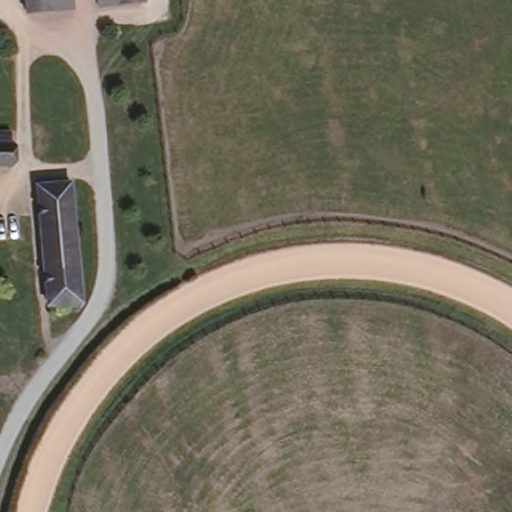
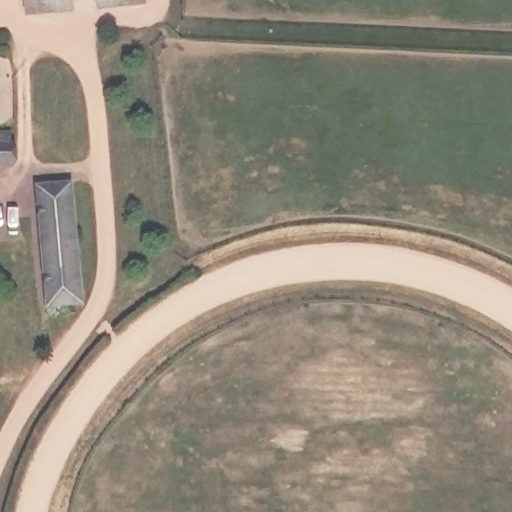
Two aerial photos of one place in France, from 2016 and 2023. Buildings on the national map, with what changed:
unchanged [(26,13),(25,0),(71,0),(72,10),(26,13)]
unchanged [(97,8),(96,0),(143,0),(143,4),(97,8)]
unchanged [(15,161),(0,162),(0,131),(11,131),(15,161)]
unchanged [(34,188),(67,186),(80,283),(82,308),(44,310),(34,188)]

